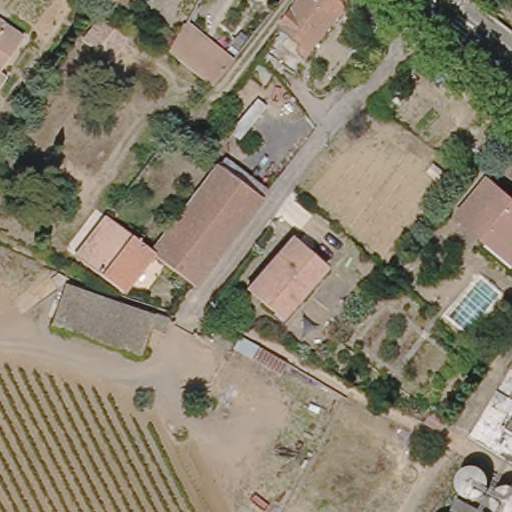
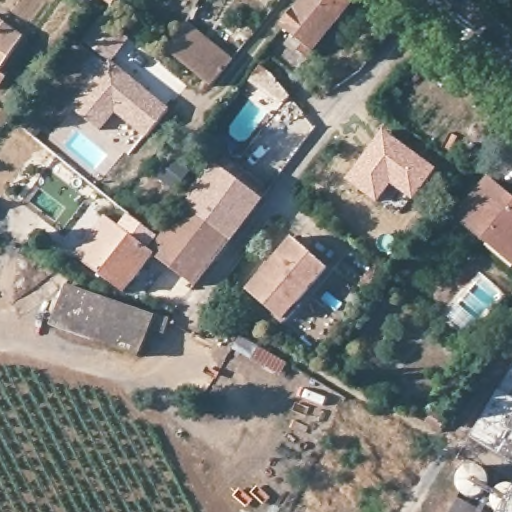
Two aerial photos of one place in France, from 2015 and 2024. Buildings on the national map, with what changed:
unchanged [(103,0),(118,0),(113,8),(103,0)]
unchanged [(296,46),(300,40),(281,23),(279,21),(296,0),(349,0),(306,53),(296,46)]
unchanged [(98,16),(126,38),(107,61),(79,40),(98,16)]
unchanged [(1,59),(0,60),(0,22),(19,34),(1,59)]
unchanged [(164,49),(178,23),(180,24),(218,53),(232,63),(213,87),(164,49)]
new [(145,137),(116,115),(102,131),(71,107),(107,61),(110,58),(171,108),(145,137)]
new [(284,108),(249,80),(260,66),(295,94),(284,108)]
new [(383,127),(437,168),(413,200),(390,185),(377,202),(345,178),(383,127)]
unchanged [(211,161),(219,165),(223,159),(227,162),(223,169),(258,195),(191,283),(148,251),(145,249),(211,163),(211,161)]
unchanged [(508,204),(512,207),(512,246),(489,228),(485,231),(457,210),(485,175),(512,196),(512,198),(508,204)]
unchanged [(508,204),(512,198),(512,207),(508,204)]
unchanged [(147,248),(145,249),(148,251),(120,288),(72,252),(102,215),(147,248)]
unchanged [(479,238),(485,231),(489,228),(512,246),(512,264),(479,238)]
unchanged [(289,239),(323,267),(280,317),(245,289),(289,239)]
unchanged [(147,327),(137,352),(50,319),(66,280),(163,319),(158,332),(147,327)]
unchanged [(467,437),(512,360),(512,463),(467,437)]
unchanged [(461,468),(465,466),(470,466),(475,467),(479,469),(482,473),(482,477),(482,482),(480,486),(477,490),(472,492),(468,492),(464,491),(460,488),(457,485),(455,480),(456,476),(458,471),(461,468)]
unchanged [(498,488),(502,486),(507,485),(511,487),(512,488),(512,510),(510,512),(509,512),(503,512),(500,511),(497,509),(494,505),(492,501),(492,496),(494,492),(495,491),(498,488)]
unchanged [(480,512),(444,512),(452,497),(480,512)]

